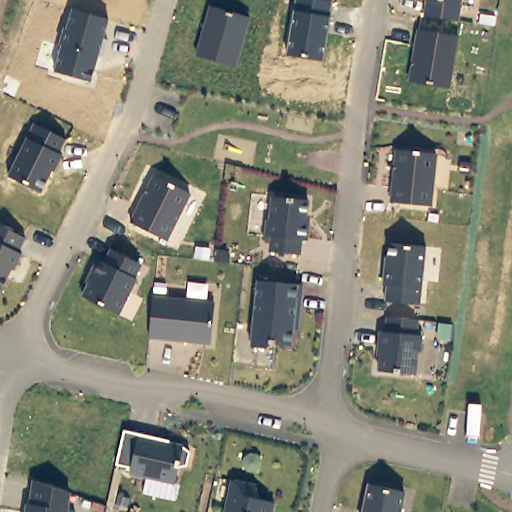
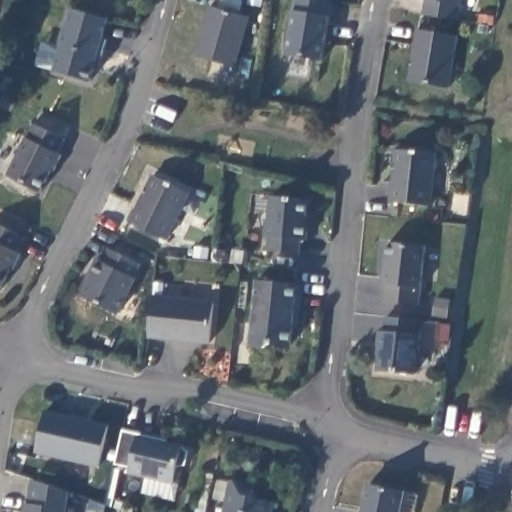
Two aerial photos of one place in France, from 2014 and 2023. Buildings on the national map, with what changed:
unchanged [(322,60),(287,56),(294,0),(316,0),(330,2),(322,60)]
unchanged [(457,20),(421,15),(424,0),(460,0),(457,20)]
unchanged [(233,66),(195,57),(208,8),(248,19),(233,66)]
unchanged [(91,80),(54,71),(71,9),(107,19),(91,80)]
unchanged [(448,87),(409,82),(417,31),(456,36),(448,87)]
unchanged [(41,193),(7,176),(32,122),(65,139),(41,193)]
unchanged [(423,204),(383,200),(389,147),(429,151),(423,204)]
unchanged [(187,188),(164,236),(128,218),(151,170),(187,188)]
unchanged [(300,220),(303,220),(300,236),(295,236),(293,251),(264,247),(266,232),(260,231),(262,215),(265,215),(267,192),(303,196),(300,220)]
unchanged [(18,246),(21,248),(13,264),(11,263),(0,284),(0,219),(25,232),(18,246)]
unchanged [(385,300),(388,281),(384,280),(389,243),(425,246),(420,303),(385,300)]
unchanged [(119,312),(83,295),(104,248),(140,264),(119,312)]
unchanged [(297,280),(292,316),(288,315),(285,340),(265,338),(259,342),(244,340),(252,274),(297,280)]
unchanged [(211,298),(206,337),(144,330),(149,290),(211,298)]
unchanged [(408,329),(414,330),(412,346),(409,346),(407,369),(371,365),(373,342),(371,342),(372,326),(378,326),(380,311),(410,314),(408,329)]
new [(100,467),(36,453),(46,410),(109,424),(100,467)]
unchanged [(186,464),(177,466),(173,482),(180,485),(176,500),(144,494),(147,478),(128,473),(129,466),(116,463),(123,429),(179,441),(189,451),(186,464)]
unchanged [(246,486),(266,490),(263,507),(268,508),(267,512),(216,512),(219,498),(226,468),(249,473),(246,486)]
unchanged [(388,512),(352,512),(361,475),(395,483),(388,512)]
unchanged [(77,510),(77,512),(23,512),(24,501),(29,503),(32,479),(71,490),(68,507),(77,510)]

